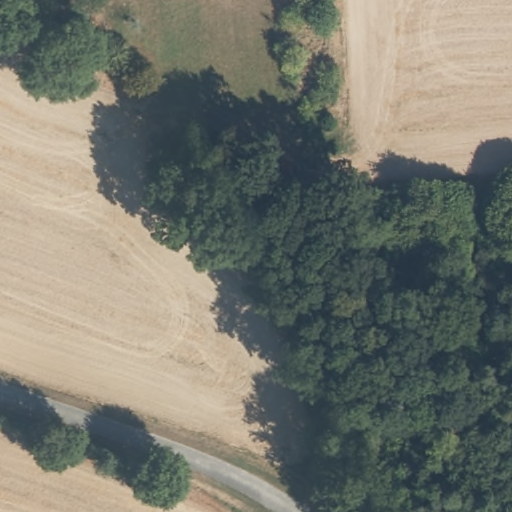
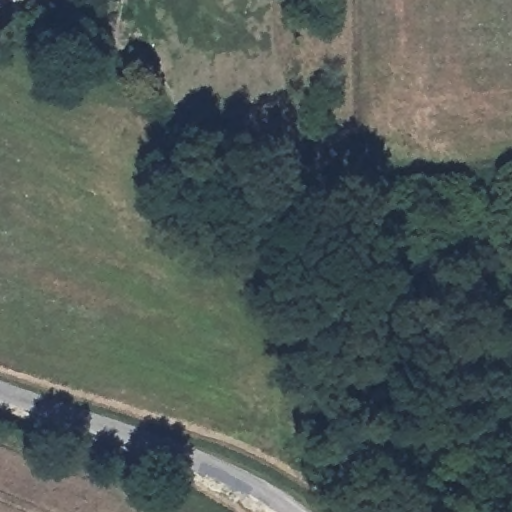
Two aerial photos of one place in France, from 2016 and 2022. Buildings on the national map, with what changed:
unchanged [(45,15),(49,0),(54,0),(76,8),(72,25),(45,15)]

